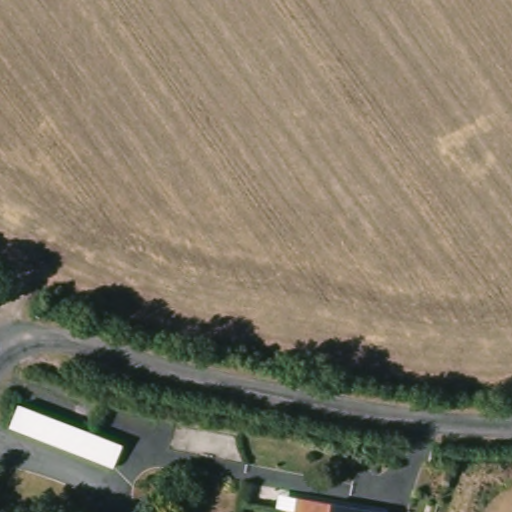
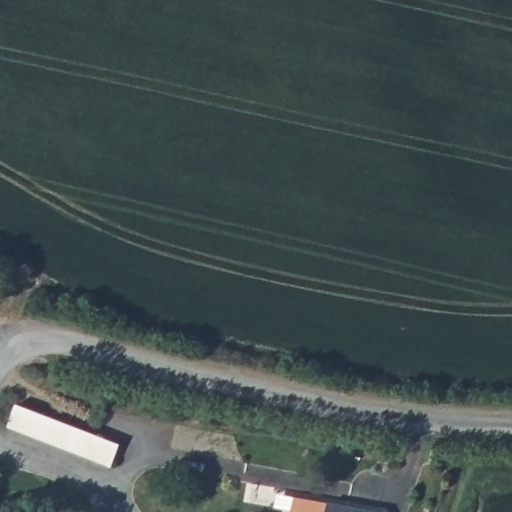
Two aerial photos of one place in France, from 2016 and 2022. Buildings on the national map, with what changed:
unchanged [(120,446),(112,467),(10,428),(18,407),(120,446)]
unchanged [(290,512),(291,507),(296,509),(299,492),(358,504),(357,512),(290,512)]
unchanged [(386,509),(386,512),(357,512),(358,504),(386,509)]

